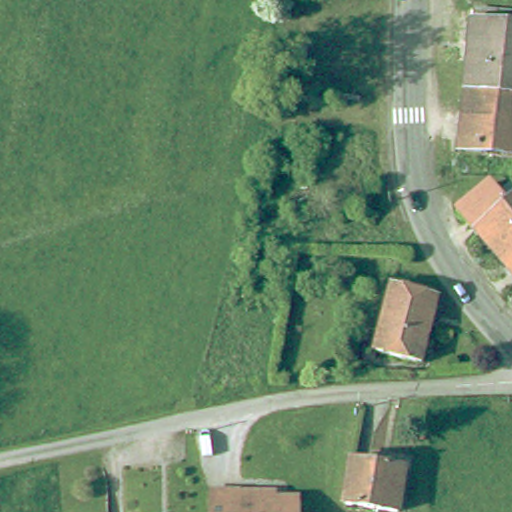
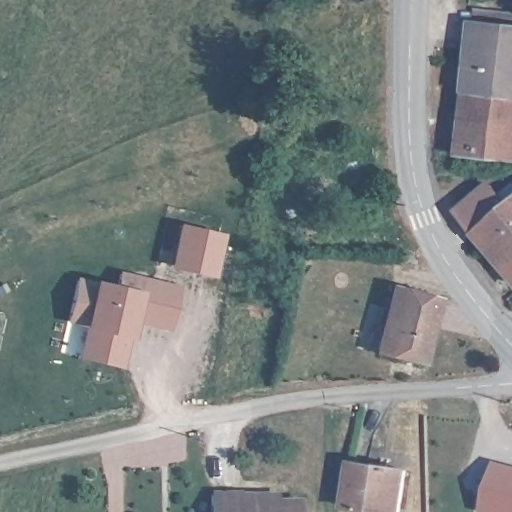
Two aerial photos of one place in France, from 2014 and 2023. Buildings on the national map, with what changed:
unchanged [(507,108),(486,103),(466,96),(477,1),(512,5),(512,109),(507,108)]
unchanged [(456,173),(466,96),(486,103),(507,108),(512,109),(512,180),(456,173)]
unchanged [(458,220),(482,197),(499,213),(512,200),(512,277),(458,220)]
new [(213,279),(167,268),(178,223),(225,233),(213,279)]
new [(167,332),(133,323),(122,366),(77,356),(84,325),(65,321),(75,277),(94,279),(115,283),(119,269),(180,284),(167,332)]
unchanged [(384,352),(372,349),(389,283),(430,295),(416,359),(384,352)]
new [(494,459),(512,464),(512,512),(485,512),(480,510),(494,459)]
unchanged [(354,468),(409,472),(406,512),(361,512),(350,511),(354,468)]
unchanged [(301,512),(210,512),(210,499),(244,499),(276,500),(276,506),(302,506),(301,512)]

